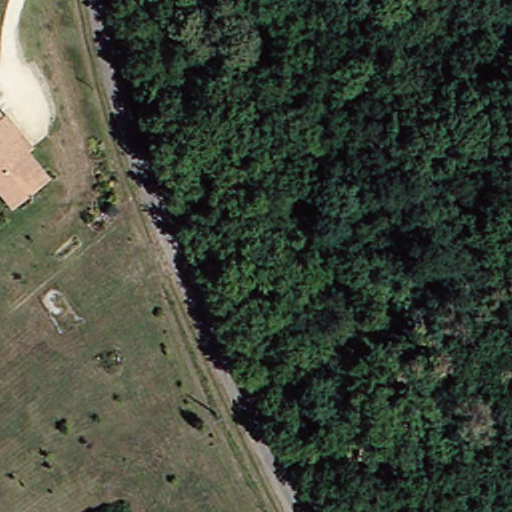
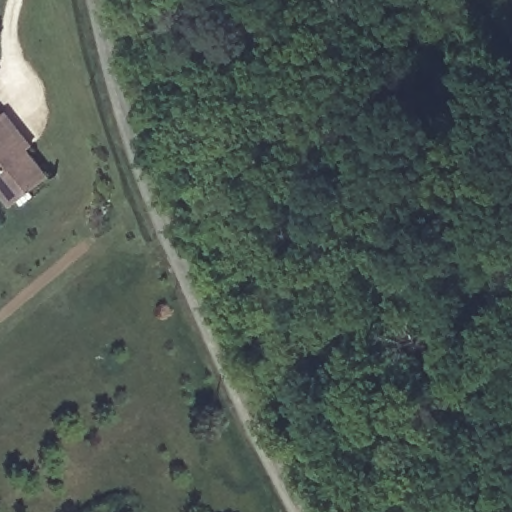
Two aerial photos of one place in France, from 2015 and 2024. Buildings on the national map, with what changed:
unchanged [(16,125),(11,131),(49,179),(13,207),(0,189),(0,114),(5,110),(16,125)]

